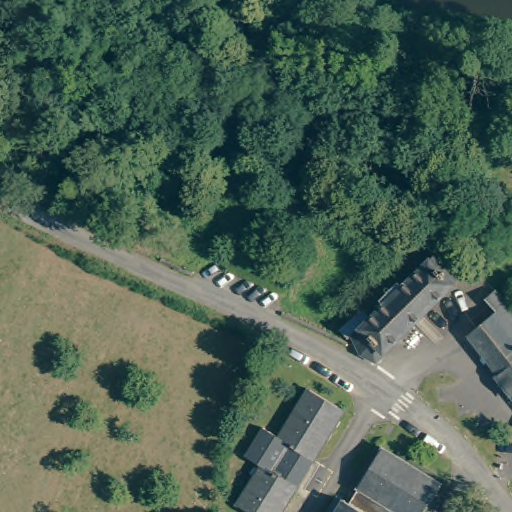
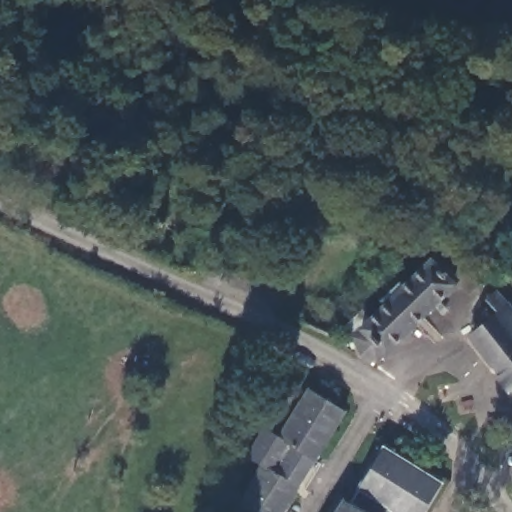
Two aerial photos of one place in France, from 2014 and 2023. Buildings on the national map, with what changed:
unchanged [(372,322),(370,323),(363,317),(359,325),(348,318),(372,292),(385,307),(401,290),(393,286),(408,269),(416,276),(453,237),(477,266),(458,286),(444,302),(411,338),(402,348),(390,343),(374,326),(372,322)]
unchanged [(500,310),(488,296),(501,285),(512,299),(512,384),(472,335),(500,310)]
unchanged [(301,445),(296,452),(312,465),(283,512),(262,512),(243,499),(267,461),(250,447),(267,423),(283,431),(315,385),(350,407),(318,456),(301,445)]
unchanged [(356,506),(393,451),(449,488),(433,512),(340,512),(348,500),(356,506)]

